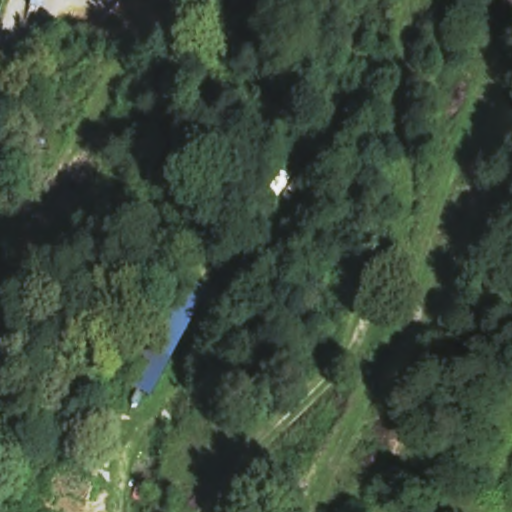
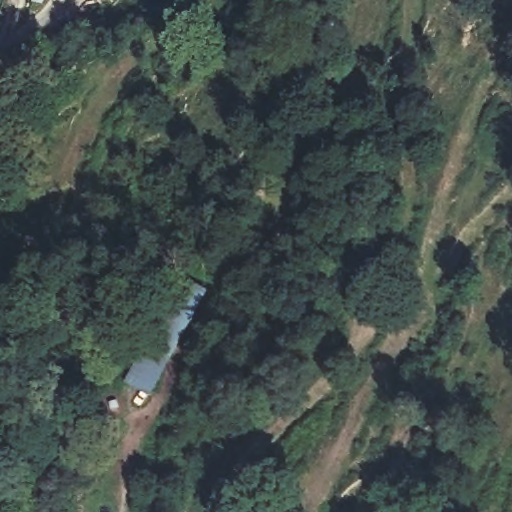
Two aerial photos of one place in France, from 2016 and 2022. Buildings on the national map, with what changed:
unchanged [(150,327),(180,345),(146,398),(117,384),(150,327)]

